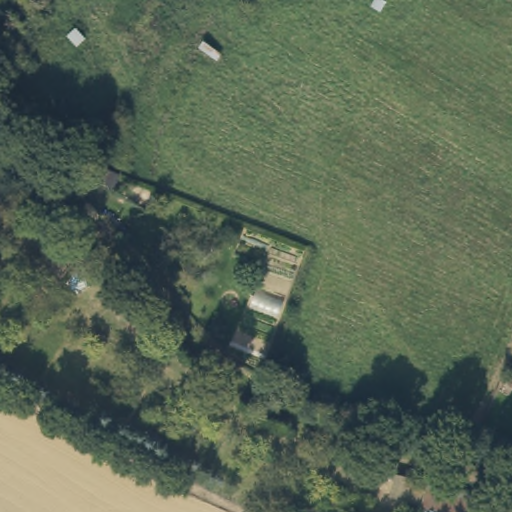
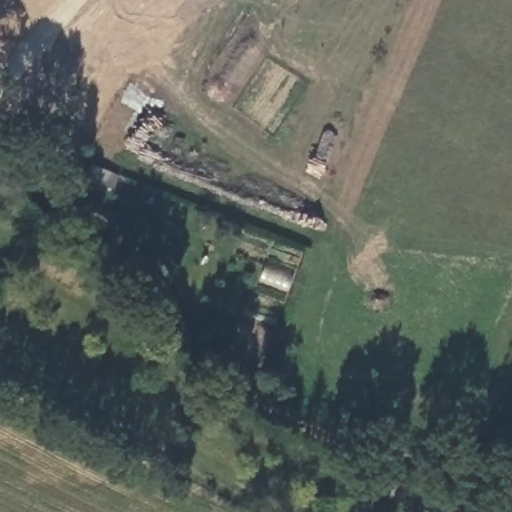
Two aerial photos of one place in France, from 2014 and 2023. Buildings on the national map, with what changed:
unchanged [(114,188),(89,179),(94,166),(119,175),(114,188)]

